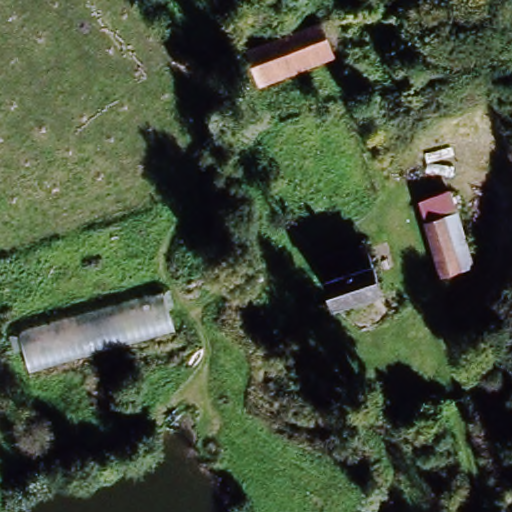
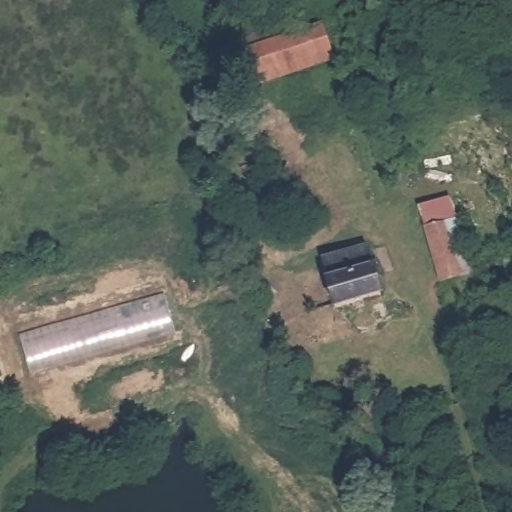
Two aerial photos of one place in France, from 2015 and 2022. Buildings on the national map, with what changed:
unchanged [(245,47),(332,20),(345,53),(334,61),(253,88),(245,47)]
unchanged [(452,198),(470,263),(436,273),(417,207),(452,198)]
unchanged [(320,279),(375,264),(384,297),(329,314),(320,279)]
unchanged [(169,297),(179,332),(22,376),(7,341),(169,297)]

